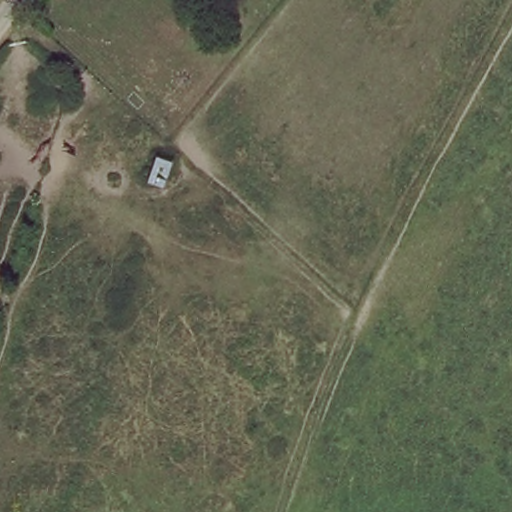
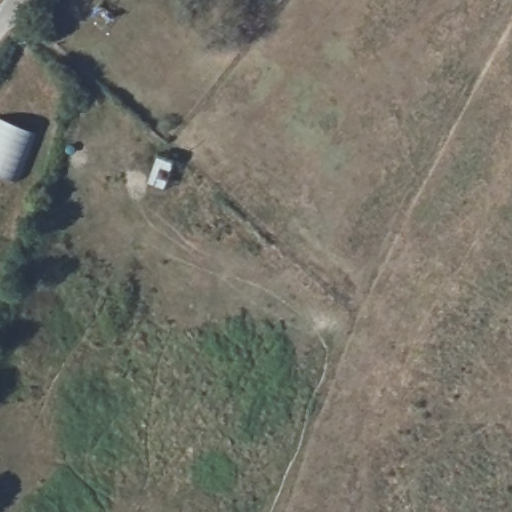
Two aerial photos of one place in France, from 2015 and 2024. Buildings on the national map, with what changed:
new [(0,174),(0,119),(39,134),(19,182),(0,174)]

